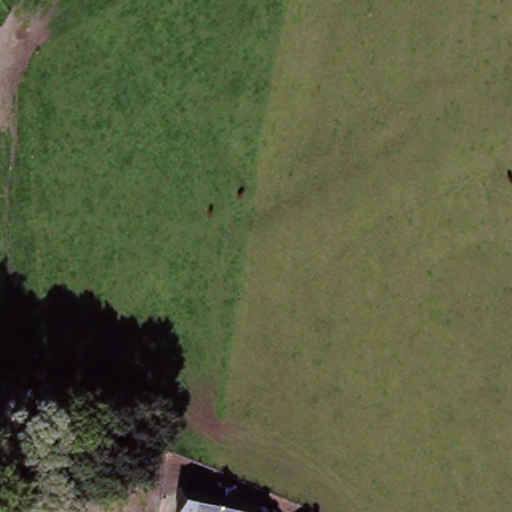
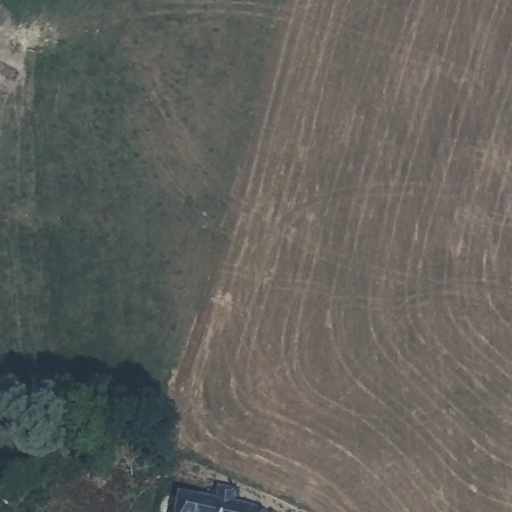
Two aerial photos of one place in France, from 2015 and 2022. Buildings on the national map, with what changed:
unchanged [(196,511),(196,510),(197,501),(197,499),(217,498),(220,512),(187,512),(196,511)]

